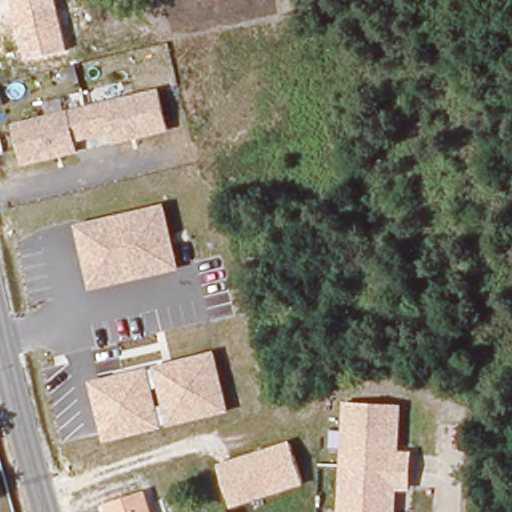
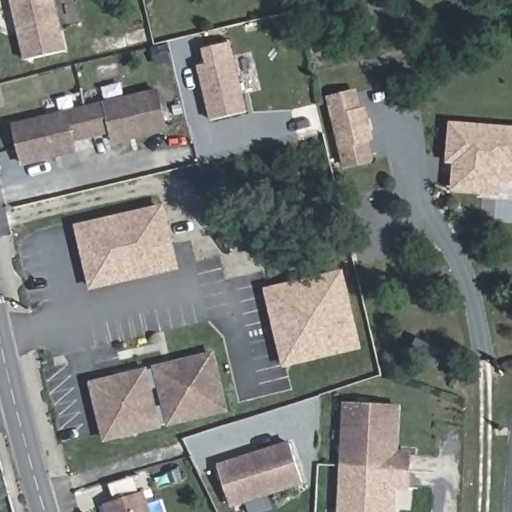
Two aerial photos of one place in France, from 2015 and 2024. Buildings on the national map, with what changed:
unchanged [(26,63),(11,0),(58,0),(70,53),(26,63)]
new [(201,66),(210,64),(206,49),(232,43),(249,111),(215,120),(207,89),(204,77),(201,66)]
unchanged [(169,132),(113,145),(110,135),(77,144),(79,153),(24,166),(14,123),(159,89),(169,132)]
new [(370,141),(375,161),(344,170),(327,97),(358,90),(362,108),(367,106),(375,139),(370,141)]
new [(501,180),(501,194),(452,191),(454,164),(446,164),(449,121),(512,125),(512,181),(501,180)]
unchanged [(93,291),(74,225),(165,205),(180,271),(93,291)]
new [(282,363),(265,289),(311,278),(312,283),(324,280),(323,275),(345,270),(363,350),(288,368),(287,363),(282,363)]
unchanged [(155,367),(216,352),(230,411),(168,427),(155,367)]
unchanged [(158,381),(168,427),(105,442),(92,382),(155,367),(158,381)]
unchanged [(345,403),(403,405),(402,452),(412,453),(410,493),(398,493),(397,512),(339,512),(345,403)]
unchanged [(232,509),(218,467),(290,442),(304,485),(232,509)]
unchanged [(105,504),(146,492),(152,512),(107,512),(105,504)]

